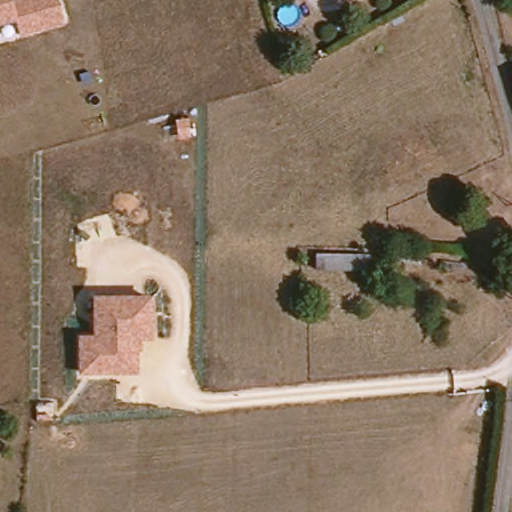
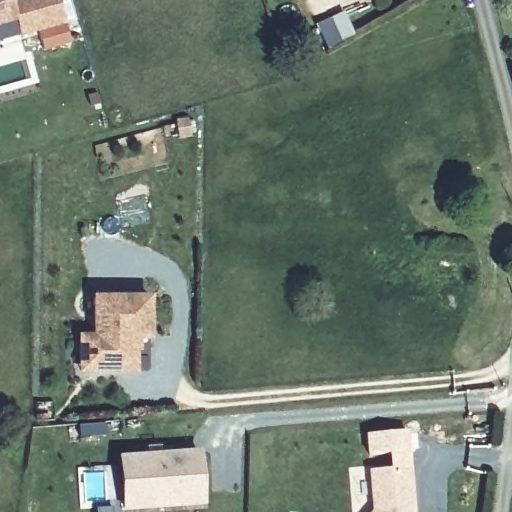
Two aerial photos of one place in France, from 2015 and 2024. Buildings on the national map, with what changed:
unchanged [(20,38),(16,21),(0,26),(0,0),(60,0),(67,24),(20,38)]
demolished [(317,253),(370,254),(370,273),(317,274),(317,253)]
unchanged [(95,298),(150,297),(151,337),(134,337),(135,371),(80,371),(81,336),(95,336),(95,298)]
new [(202,450),(206,507),(122,512),(118,456),(202,450)]
new [(412,468),(415,512),(369,512),(371,510),(368,472),(412,468)]

